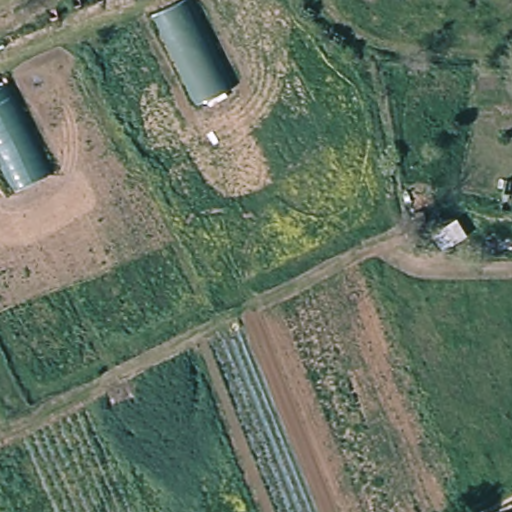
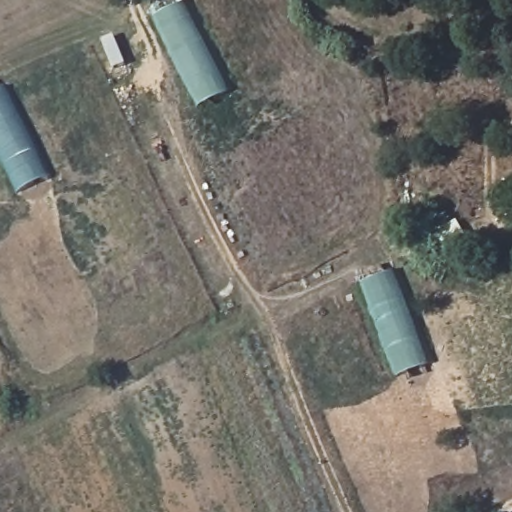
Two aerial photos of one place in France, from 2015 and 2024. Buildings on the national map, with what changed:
unchanged [(194,0),(242,89),(200,110),(152,16),(189,0),(194,0)]
unchanged [(21,187),(0,148),(0,89),(12,82),(58,175),(21,187)]
new [(396,374),(362,281),(397,268),(430,362),(396,374)]

